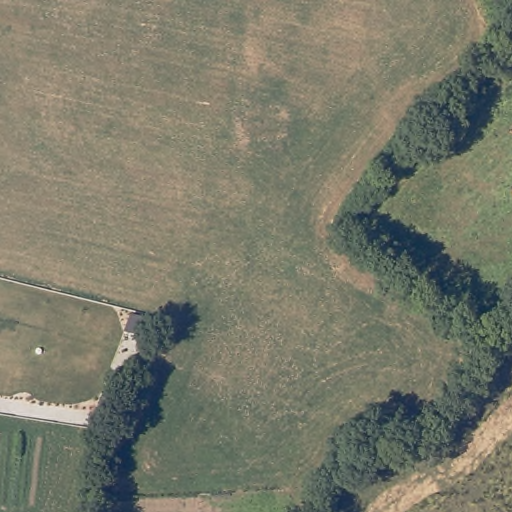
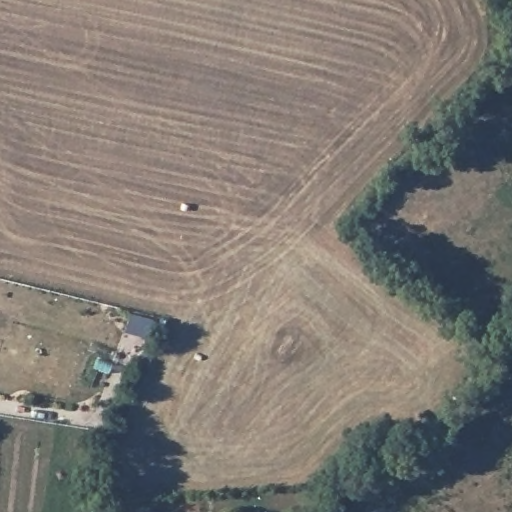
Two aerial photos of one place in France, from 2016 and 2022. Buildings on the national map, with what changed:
[]

